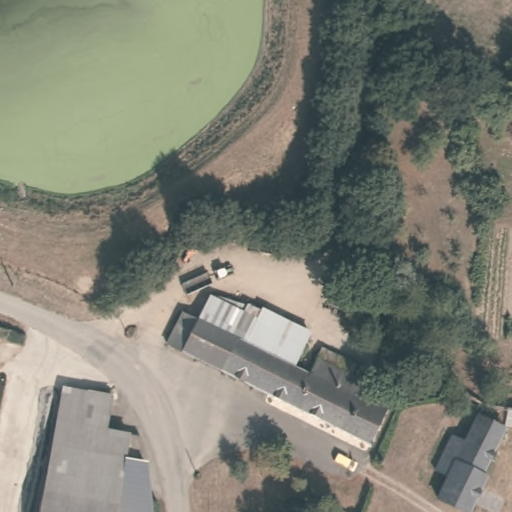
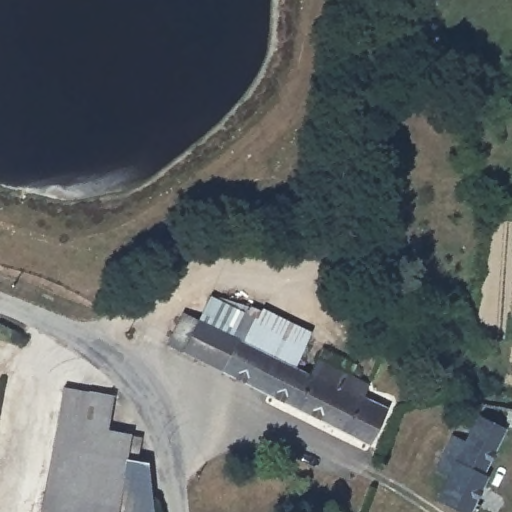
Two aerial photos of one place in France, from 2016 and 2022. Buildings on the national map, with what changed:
unchanged [(182,313),(195,319),(208,298),(252,321),(240,343),(287,369),(301,377),(317,349),(354,369),(348,382),(361,389),(356,399),(378,412),(358,449),(166,342),(182,313)]
unchanged [(240,343),(252,321),(257,312),(304,338),(287,369),(240,343)]
unchanged [(97,392),(91,430),(133,439),(129,462),(119,462),(70,453),(74,428),(55,424),(62,385),(97,392)]
unchanged [(509,409),(512,410),(512,431),(502,427),(509,409)]
unchanged [(495,432),(474,475),(482,480),(466,512),(459,512),(432,499),(443,476),(429,470),(446,435),(453,437),(464,417),(495,432)]
unchanged [(74,428),(70,453),(119,462),(129,462),(139,462),(146,512),(38,512),(55,424),(74,428)]

